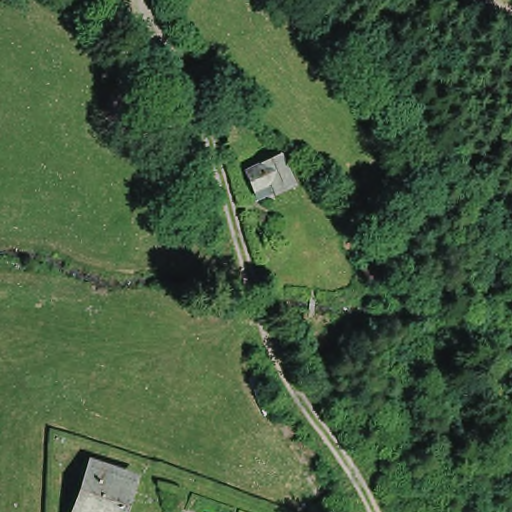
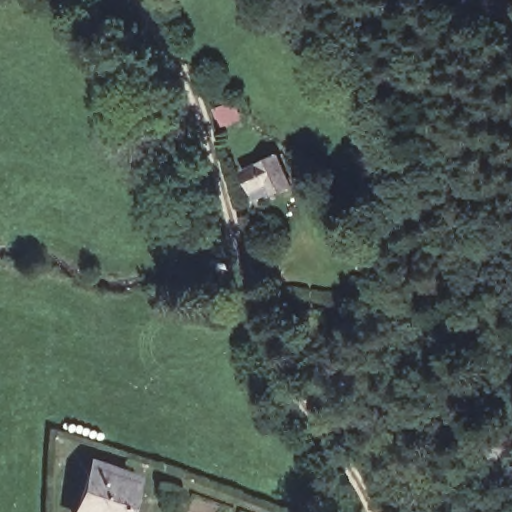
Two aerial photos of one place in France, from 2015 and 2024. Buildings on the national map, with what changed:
unchanged [(279,156),(295,186),(276,200),(269,187),(251,195),(240,177),(279,156)]
unchanged [(60,512),(77,466),(132,483),(122,512),(60,512)]

